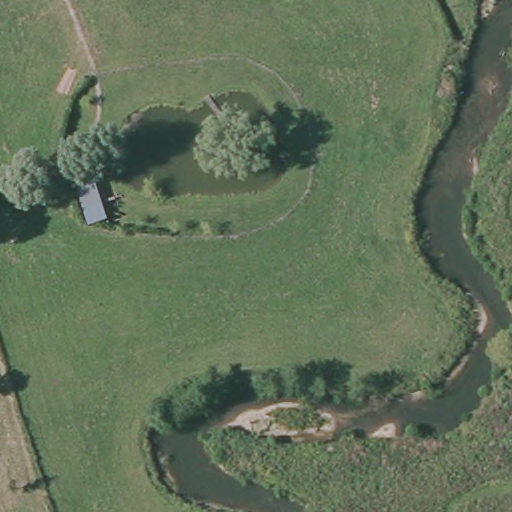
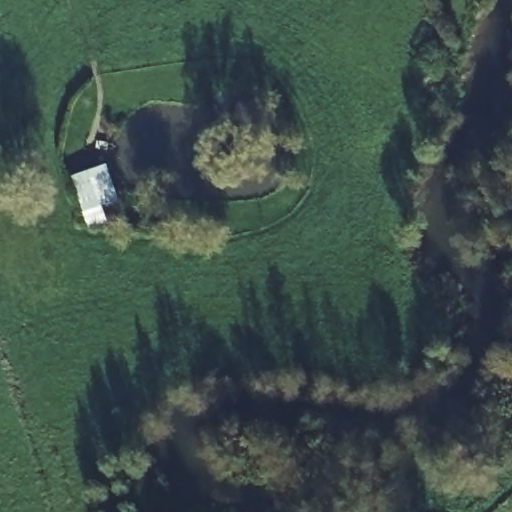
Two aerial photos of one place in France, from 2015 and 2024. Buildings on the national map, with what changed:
unchanged [(84,210),(72,170),(92,164),(103,204),(84,210)]

